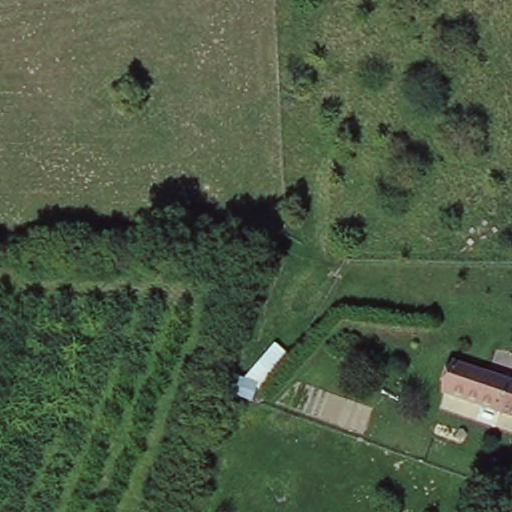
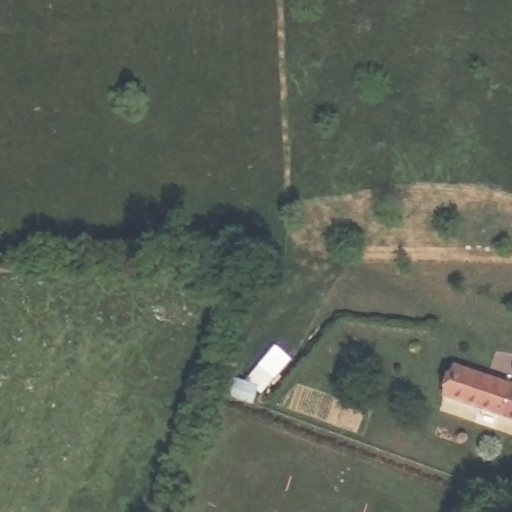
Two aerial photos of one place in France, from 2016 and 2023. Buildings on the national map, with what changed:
unchanged [(275,342),(292,358),(263,385),(258,382),(243,377),(275,342)]
unchanged [(451,357),(512,378),(512,422),(437,396),(451,357)]
unchanged [(250,404),(229,396),(234,373),(258,382),(250,404)]

